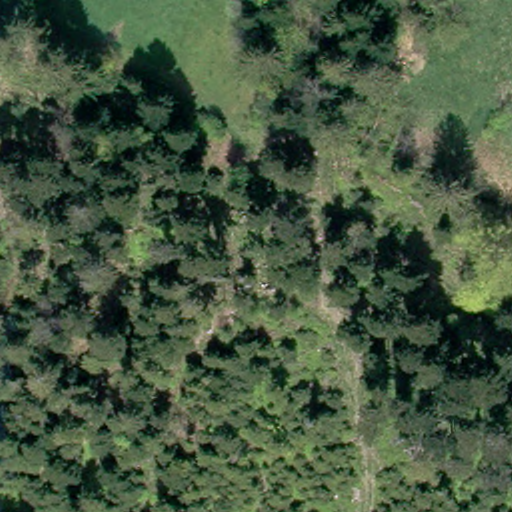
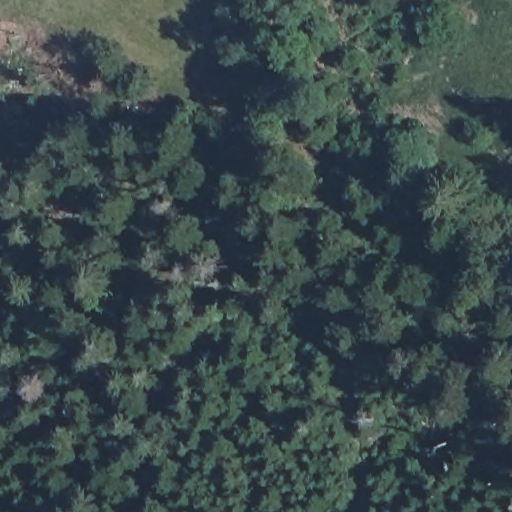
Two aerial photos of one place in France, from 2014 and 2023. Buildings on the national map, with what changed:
[]

